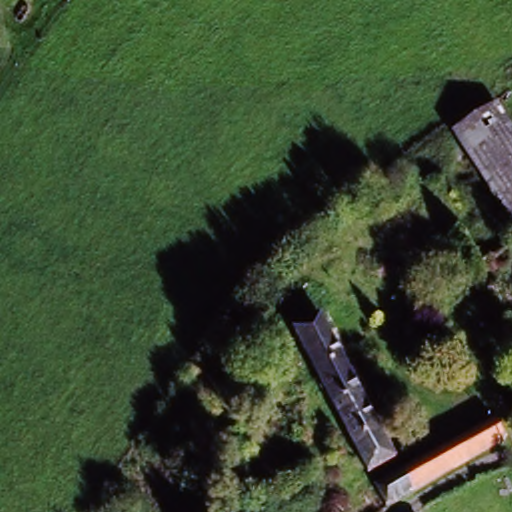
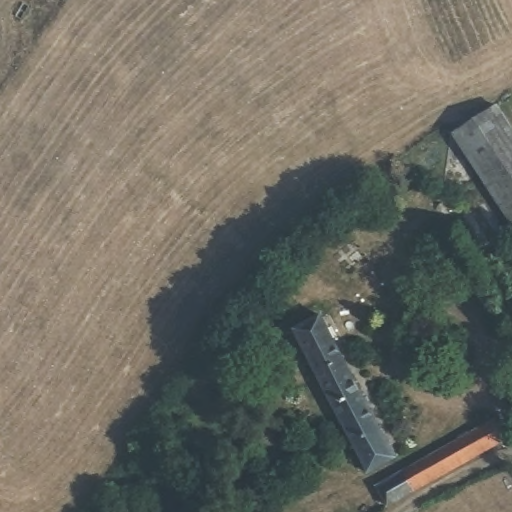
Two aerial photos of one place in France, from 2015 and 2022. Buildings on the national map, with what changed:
unchanged [(512,136),(512,226),(446,138),(490,105),(512,136)]
unchanged [(397,450),(370,468),(296,353),(278,360),(267,339),(313,312),(397,450)]
unchanged [(488,422),(500,442),(381,507),(368,487),(488,422)]

